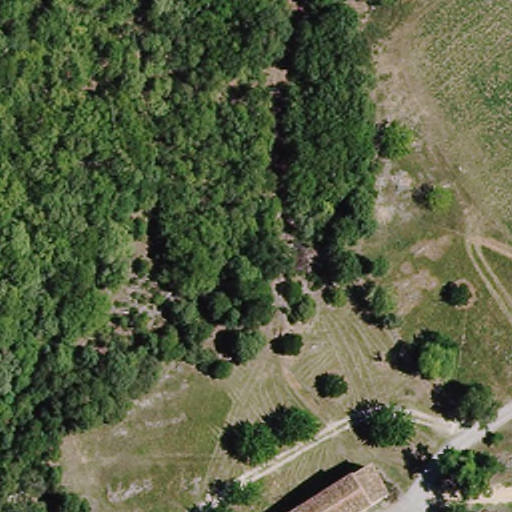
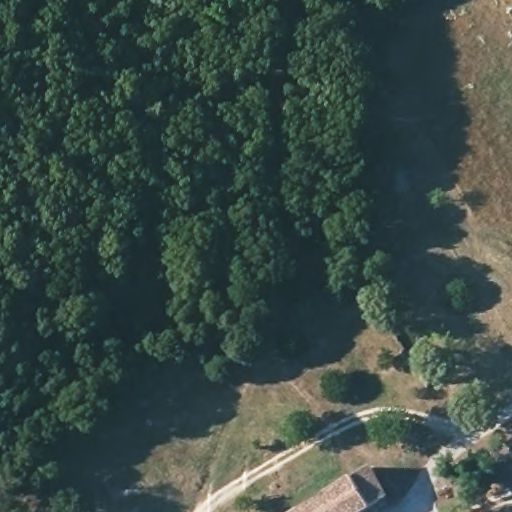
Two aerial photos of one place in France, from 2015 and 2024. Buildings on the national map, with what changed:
unchanged [(375,511),(373,512),(300,512),(375,473),(390,504),(375,511)]

